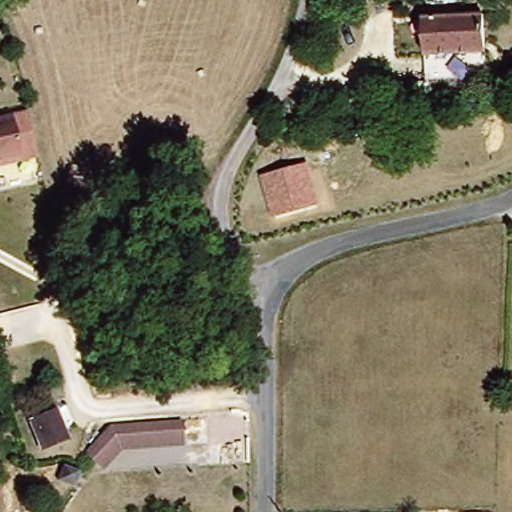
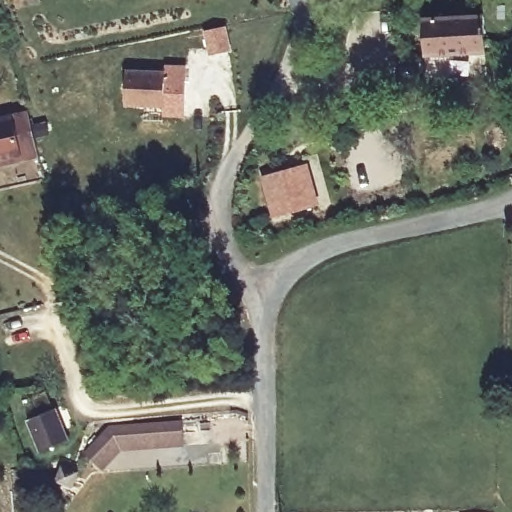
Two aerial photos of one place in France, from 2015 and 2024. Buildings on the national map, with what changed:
unchanged [(422,19),(482,15),(484,52),(424,56),(422,19)]
new [(123,109),(124,68),(164,70),(164,64),(184,64),(183,104),(183,119),(161,119),(161,111),(123,109)]
unchanged [(0,121),(36,114),(46,157),(29,161),(4,167),(3,161),(0,162),(0,121)]
unchanged [(309,165),(319,204),(271,217),(261,179),(309,165)]
unchanged [(56,408),(69,440),(43,451),(30,420),(56,408)]
unchanged [(184,445),(124,448),(120,451),(103,469),(86,453),(111,427),(184,422),(184,445)]
unchanged [(63,466),(79,472),(73,487),(58,481),(63,466)]

